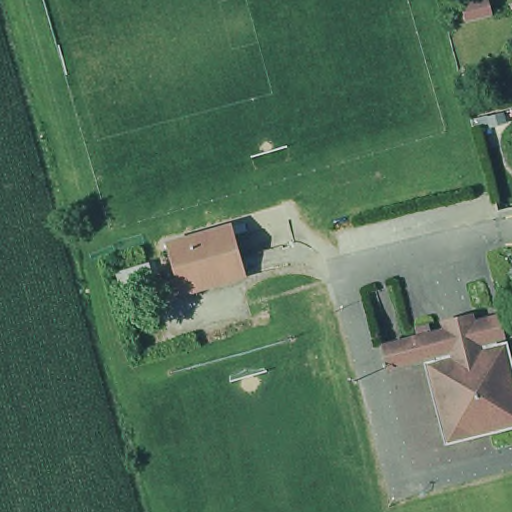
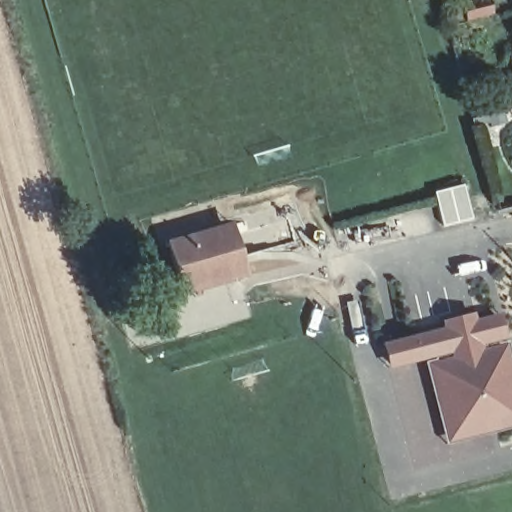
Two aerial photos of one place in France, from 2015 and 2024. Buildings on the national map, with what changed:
unchanged [(464,21),(460,5),(480,0),(486,0),(489,15),(464,21)]
unchanged [(181,298),(166,247),(193,239),(234,227),(238,238),(251,277),(181,298)]
unchanged [(434,363),(428,364),(399,373),(392,350),(421,341),(500,317),(512,363),(512,428),(483,437),(451,421),(434,363)]

